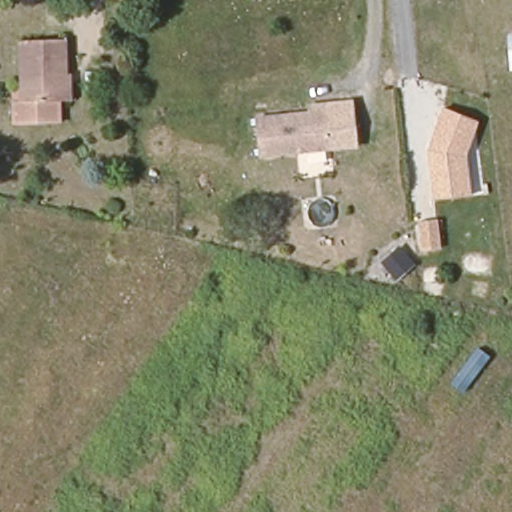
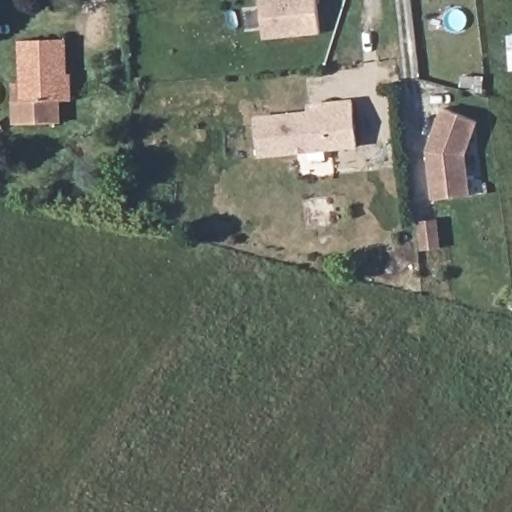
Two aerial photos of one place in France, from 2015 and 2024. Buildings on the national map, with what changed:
new [(320,34),(265,40),(261,0),(316,0),(320,34)]
unchanged [(62,123),(15,125),(15,99),(24,100),(21,38),(67,38),(69,71),(75,71),(76,99),(62,99),(62,123)]
unchanged [(354,147),(257,156),(255,119),(307,115),(307,107),(325,105),(351,104),(354,147)]
unchanged [(475,117),(465,154),(468,195),(434,198),(431,149),(443,105),(475,117)]
unchanged [(415,221),(437,219),(441,248),(419,250),(415,221)]
unchanged [(397,244),(415,262),(398,279),(382,262),(397,244)]

